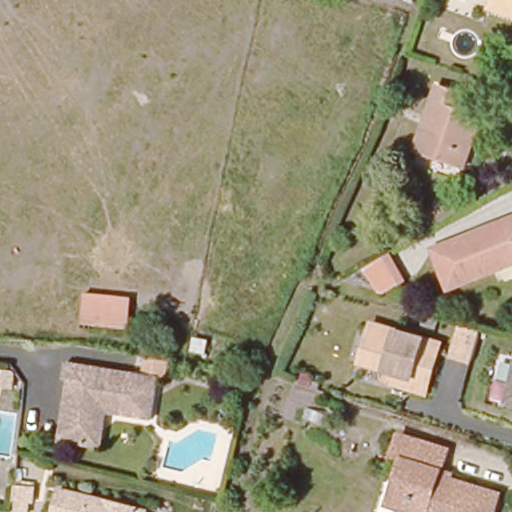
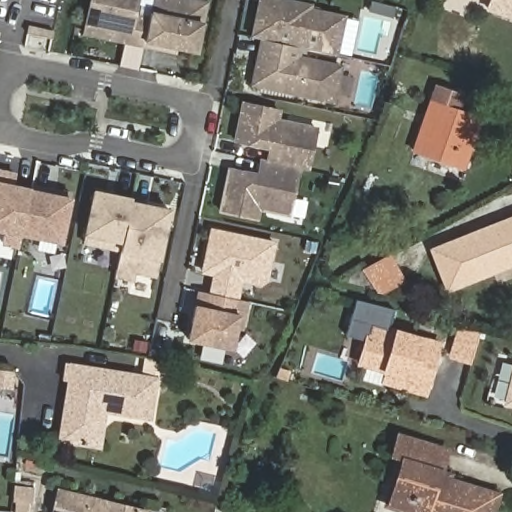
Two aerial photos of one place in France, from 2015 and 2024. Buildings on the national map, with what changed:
new [(92,0),(139,0),(136,15),(150,19),(144,45),(85,33),(92,0)]
new [(161,49),(144,45),(150,19),(154,0),(191,0),(208,3),(197,52),(177,47),(176,52),(161,49)]
new [(261,0),(286,0),(312,5),(311,9),(346,17),(338,55),(302,47),(263,39),(254,37),(261,0)]
new [(390,18),(370,13),(374,0),(393,6),(390,18)]
unchanged [(489,12),(493,0),(512,0),(512,20),(489,12)]
new [(263,39),(302,47),(299,57),(342,66),(335,102),(254,84),(263,39)]
unchanged [(464,171),(415,154),(437,92),(463,101),(458,116),(480,124),(464,171)]
new [(272,143),(264,141),(263,147),(237,141),(245,103),(280,111),(278,121),(318,129),(309,171),(268,162),(272,143)]
new [(222,211),(231,169),(252,174),(251,179),(258,181),(262,161),(300,169),(291,215),(260,209),(258,219),(222,211)]
new [(16,175),(15,181),(14,187),(31,191),(23,229),(20,246),(3,242),(6,230),(0,229),(0,172),(6,173),(16,175)]
new [(33,186),(49,190),(71,194),(71,199),(63,237),(23,229),(31,191),(33,186)]
new [(96,192),(132,200),(131,202),(121,250),(85,242),(96,192)]
new [(121,250),(131,202),(170,210),(156,277),(135,272),(133,281),(116,277),(121,250)]
unchanged [(447,292),(430,249),(512,216),(512,267),(447,292)]
new [(213,231),(275,244),(267,281),(262,285),(242,281),(238,300),(211,295),(216,275),(204,273),(205,267),(213,231)]
unchanged [(404,280),(383,291),(377,287),(365,270),(390,256),(404,280)]
new [(200,292),(209,294),(211,295),(238,300),(249,303),(243,331),(238,329),(233,350),(189,341),(197,307),(200,292)]
unchanged [(389,372),(362,364),(373,325),(441,345),(427,394),(394,384),(386,382),(389,372)]
unchanged [(453,357),(462,328),(481,333),(472,363),(453,357)]
unchanged [(72,356),(141,372),(145,355),(166,361),(163,377),(156,376),(146,415),(109,406),(92,416),(86,440),(59,433),(73,374),(68,372),(72,356)]
unchanged [(409,458),(398,455),(404,435),(453,450),(444,477),(504,494),(498,512),(422,512),(395,504),(409,458)]
unchanged [(104,495),(151,506),(149,512),(57,512),(63,485),(104,495)]
unchanged [(29,499),(27,512),(16,511),(17,498),(29,499)]

